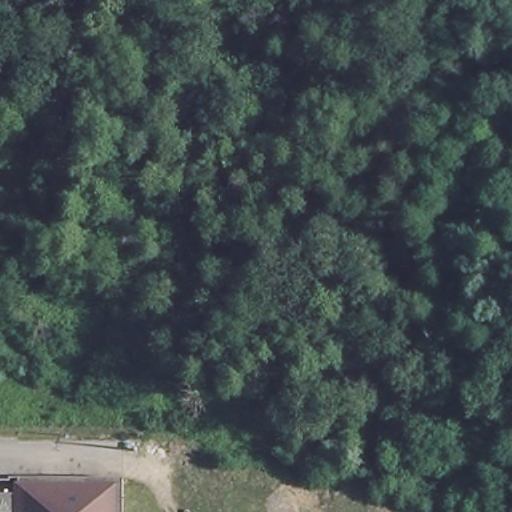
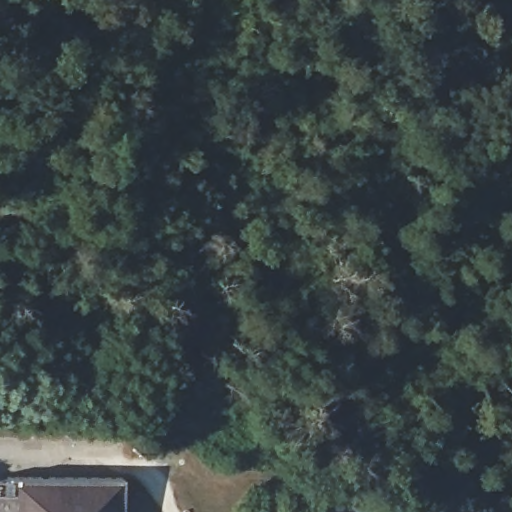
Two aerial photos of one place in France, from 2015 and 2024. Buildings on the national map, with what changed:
unchanged [(10,481),(10,478),(18,478),(43,477),(57,477),(130,477),(130,494),(131,512),(0,512),(0,481),(10,481)]

